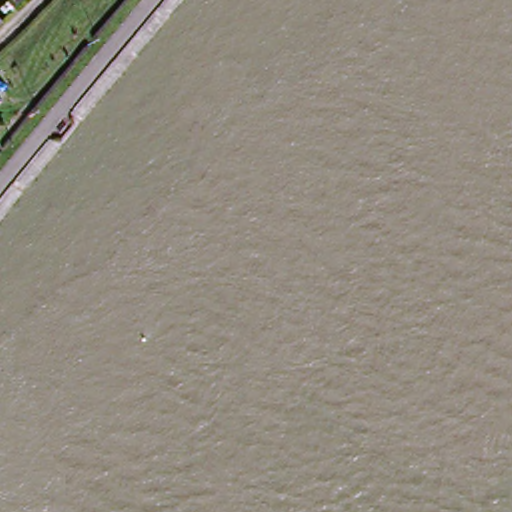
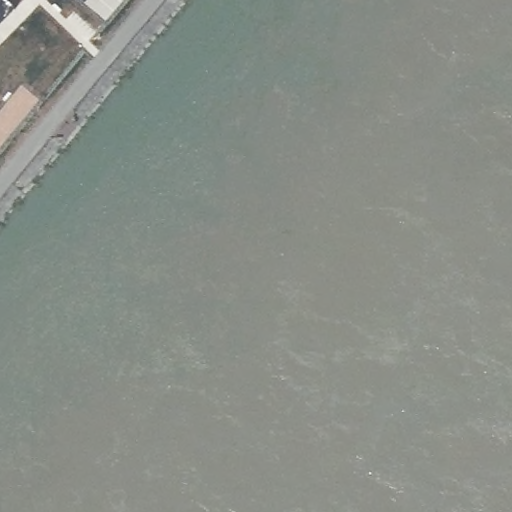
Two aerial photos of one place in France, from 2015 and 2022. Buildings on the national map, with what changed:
[]

